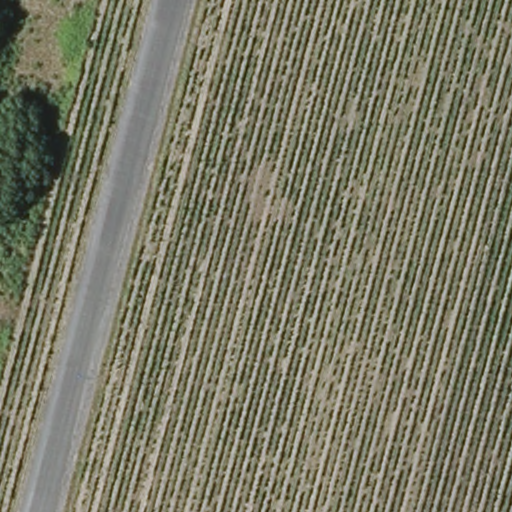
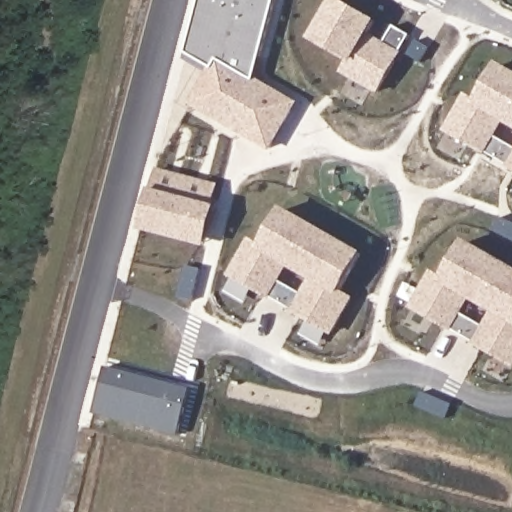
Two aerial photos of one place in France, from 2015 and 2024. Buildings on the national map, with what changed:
new [(249,79),(293,104),(268,148),(190,104),(210,68),(184,54),(199,0),(274,0),(259,59),(253,81),(249,79)]
new [(335,0),(337,0),(373,21),(365,35),(382,45),(392,27),(408,36),(376,91),(342,71),(349,59),(312,37),(335,0)]
new [(210,68),(207,74),(183,61),(184,54),(210,68)]
new [(475,102),(496,64),(512,73),(512,167),(444,129),(463,95),(475,102)]
new [(139,229),(141,221),(154,172),(214,187),(201,237),(199,244),(139,229)]
new [(250,241),(262,248),(284,210),(361,254),(339,291),(351,298),(332,333),(231,275),(250,241)]
new [(444,279),(465,241),(512,267),(512,362),(413,306),(432,272),(444,279)]
new [(188,390),(176,437),(91,415),(103,368),(188,390)]

